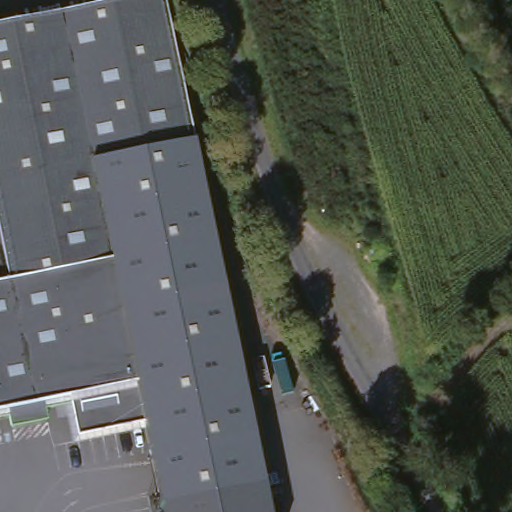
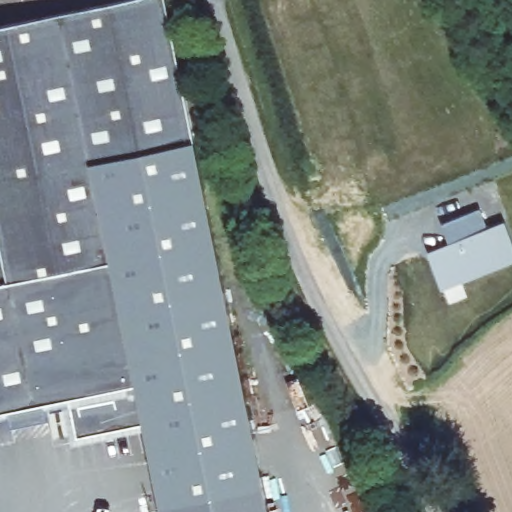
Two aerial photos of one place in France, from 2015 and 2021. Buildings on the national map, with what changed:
unchanged [(272,512),(163,512),(147,427),(78,440),(70,400),(0,414),(0,25),(126,0),(171,0),(272,512)]
new [(480,208),(488,227),(503,220),(512,242),(512,260),(442,287),(427,253),(449,245),(442,225),(480,208)]

